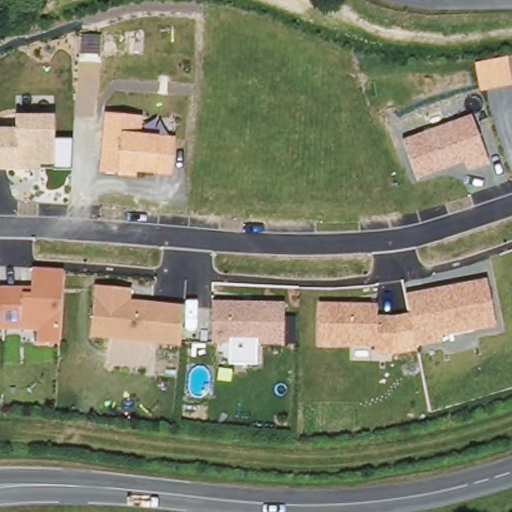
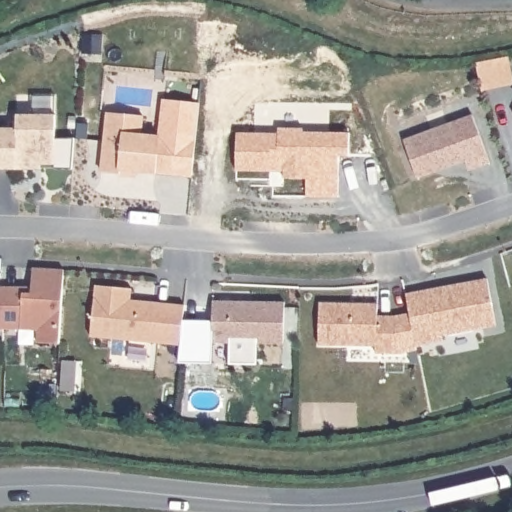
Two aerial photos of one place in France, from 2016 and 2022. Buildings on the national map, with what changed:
unchanged [(475,63),(507,56),(511,84),(480,90),(475,63)]
unchanged [(105,111),(144,114),(141,132),(176,135),(173,174),(101,169),(105,111)]
unchanged [(15,114),(54,115),(54,164),(39,164),(39,169),(16,168),(0,169),(0,128),(15,128),(15,114)]
unchanged [(402,138),(470,114),(490,161),(467,170),(463,159),(416,176),(402,138)]
new [(305,195),(305,179),(282,178),(282,170),(235,170),(236,133),(277,133),(277,126),(303,128),(303,132),(348,133),(348,158),(338,158),(338,196),(305,195)]
unchanged [(30,267),(63,269),(58,343),(37,343),(37,331),(19,329),(0,329),(0,285),(29,285),(30,267)]
unchanged [(406,292),(486,276),(495,325),(441,336),(442,340),(416,344),(406,292)]
unchanged [(94,285),(130,287),(129,299),(182,304),(179,344),(90,334),(94,285)]
unchanged [(212,300),(283,303),(282,343),(210,342),(212,300)]
unchanged [(319,303),(376,304),(376,316),(393,316),(393,354),(373,354),(373,346),(317,343),(319,303)]

